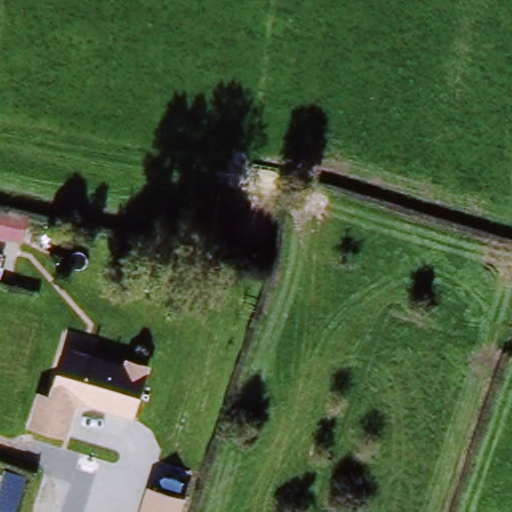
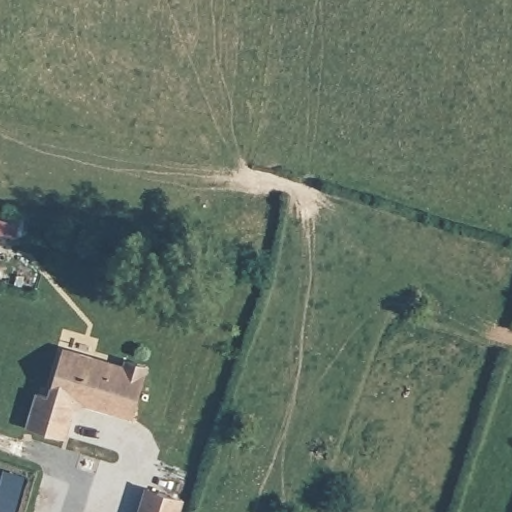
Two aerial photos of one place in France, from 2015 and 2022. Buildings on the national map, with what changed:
unchanged [(27,216),(23,242),(0,238),(0,210),(27,216)]
unchanged [(32,392),(45,396),(61,345),(119,362),(121,356),(150,365),(132,423),(76,403),(66,437),(24,425),(32,392)]
unchanged [(9,512),(0,510),(0,489),(3,480),(18,487),(11,512),(9,512)]
unchanged [(138,512),(149,486),(164,492),(157,512),(138,512)]
unchanged [(187,501),(183,512),(157,512),(164,492),(187,501)]

